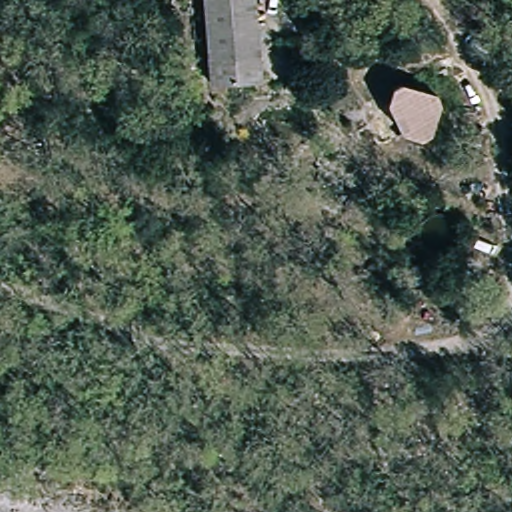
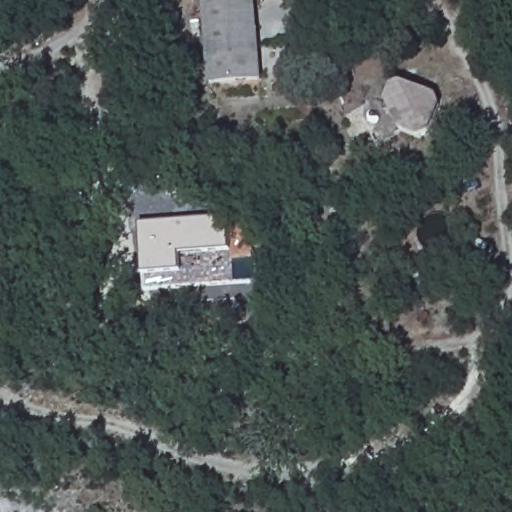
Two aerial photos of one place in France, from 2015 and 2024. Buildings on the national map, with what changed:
unchanged [(207,0),(255,0),(259,81),(212,84),(207,0)]
unchanged [(401,110),(393,112),(389,99),(397,81),(443,100),(431,129),(416,134),(407,131),(401,110)]
new [(224,217),(230,249),(233,279),(143,288),(142,272),(140,224),(224,217)]

